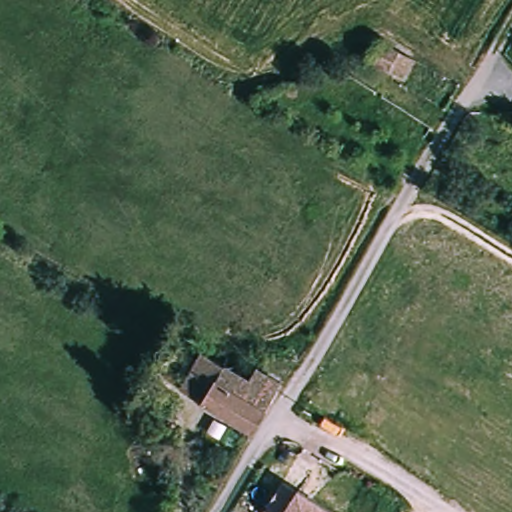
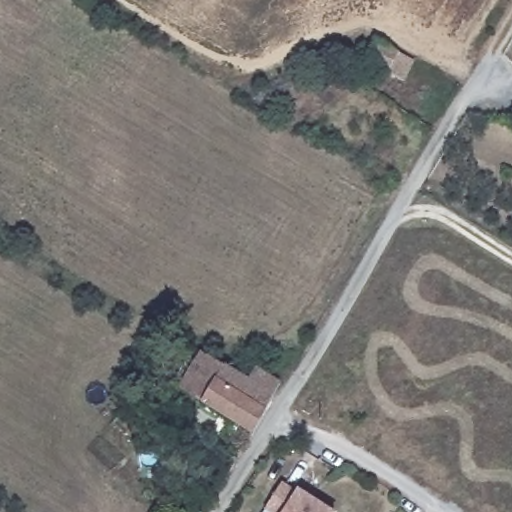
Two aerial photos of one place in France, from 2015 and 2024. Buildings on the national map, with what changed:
unchanged [(379,34),(416,57),(404,77),(366,55),(379,34)]
unchanged [(248,431),(247,432),(174,387),(198,347),(243,376),(252,361),(279,377),(248,431)]
unchanged [(271,512),(259,503),(274,478),(289,488),(291,486),(328,510),(326,512),(271,512)]
unchanged [(0,512),(0,511),(1,512),(0,512)]

